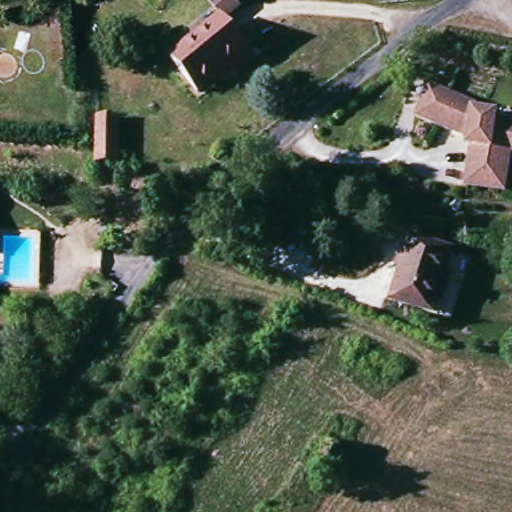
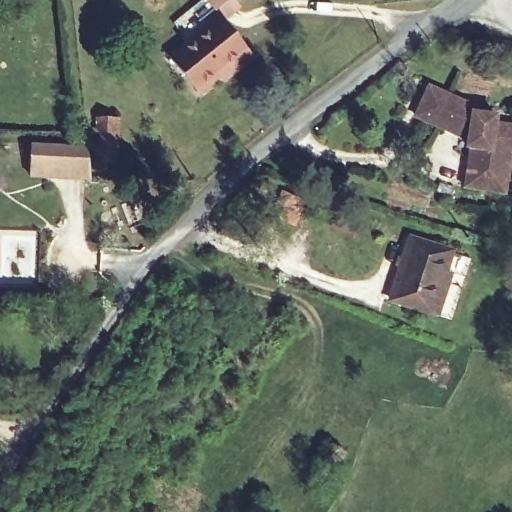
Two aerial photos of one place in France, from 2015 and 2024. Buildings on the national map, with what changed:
unchanged [(209,0),(245,0),(225,17),(209,0)]
unchanged [(224,72),(202,90),(175,56),(225,17),(254,47),(260,55),(230,79),(224,72)]
unchanged [(468,131),(466,135),(420,115),(432,85),(480,104),(479,110),(500,114),(497,121),(512,124),(512,165),(507,190),(469,184),(476,145),(470,144),(474,130),(468,131)]
unchanged [(121,121),(122,168),(102,168),(102,122),(121,121)]
new [(30,141),(90,143),(90,180),(29,177),(30,141)]
unchanged [(438,306),(400,296),(417,237),(456,247),(451,264),(462,266),(449,309),(438,306)]
unchanged [(347,458),(336,476),(317,465),(328,447),(347,458)]

